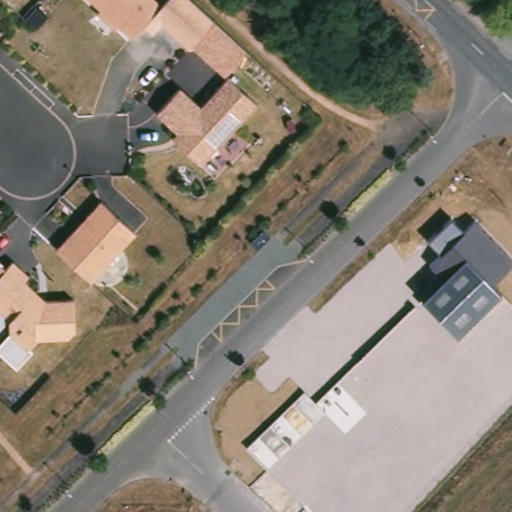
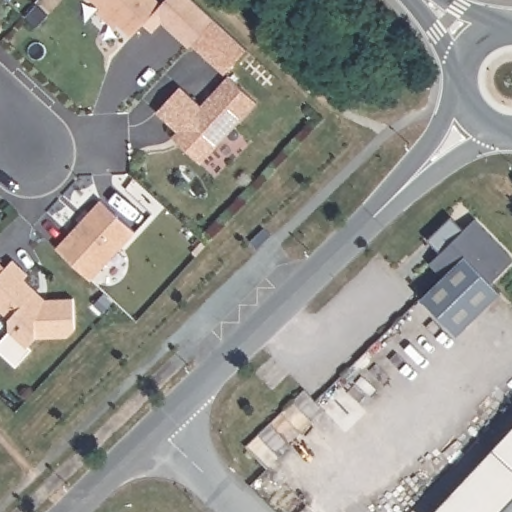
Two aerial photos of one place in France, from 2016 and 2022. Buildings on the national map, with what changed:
unchanged [(97,12),(101,8),(92,0),(155,0),(161,5),(132,37),(118,24),(114,28),(97,12)]
unchanged [(161,5),(165,0),(192,0),(247,49),(222,74),(193,47),(190,50),(160,23),(153,31),(144,23),(161,5)]
unchanged [(170,130),(149,110),(172,85),(193,105),(221,75),(249,101),(226,126),(208,146),(193,162),(171,141),(165,136),(170,130)]
unchanged [(130,233),(86,281),(51,249),(75,223),(81,217),(96,201),(130,233)]
unchanged [(428,265),(440,252),(428,240),(450,219),(462,232),(476,221),(512,258),(512,262),(491,283),(502,293),(457,334),(423,300),(440,279),(428,265)]
unchanged [(64,337),(32,338),(23,347),(5,331),(5,319),(0,315),(0,268),(1,269),(8,261),(23,275),(19,280),(32,292),(41,300),(69,299),(70,329),(64,337)]
new [(434,512),(512,427),(512,497),(498,512),(434,512)]

